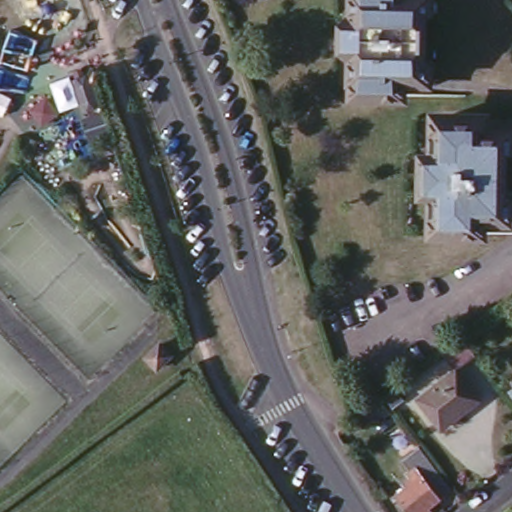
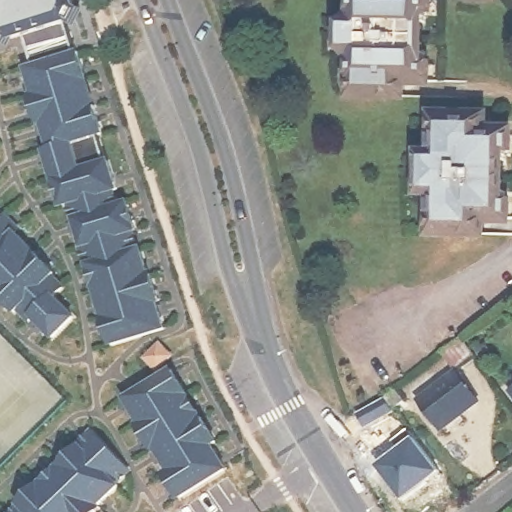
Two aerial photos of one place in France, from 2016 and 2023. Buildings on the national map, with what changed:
new [(72,3),(65,17),(10,33),(0,27),(0,0),(71,0),(72,3)]
unchanged [(357,61),(345,60),(347,24),(358,24),(359,0),(405,0),(428,0),(427,27),(423,27),(423,54),(426,54),(425,87),(398,86),(398,102),(355,99),(357,61)]
new [(103,131),(72,141),(80,165),(107,158),(117,186),(112,188),(115,199),(125,195),(164,326),(105,340),(65,204),(57,206),(40,147),(45,145),(21,62),(79,47),(103,131)]
unchanged [(428,184),(415,184),(415,149),(429,149),(430,112),(448,113),(449,111),(477,112),(476,128),(500,130),(500,155),(497,155),(495,186),(500,186),(499,213),(475,212),(475,228),(447,228),(446,224),(428,224),(428,184)]
new [(16,226),(13,230),(62,284),(52,294),(72,314),(48,338),(30,318),(25,322),(14,309),(10,313),(0,304),(0,211),(1,209),(16,226)]
unchanged [(454,378),(440,358),(460,342),(475,362),(454,378)]
unchanged [(143,359),(156,346),(166,356),(154,369),(143,359)]
new [(216,440),(210,444),(225,466),(175,498),(155,472),(161,468),(117,395),(169,364),(216,440)]
unchanged [(436,430),(418,404),(454,378),(476,408),(460,420),(440,435),(436,430)]
unchanged [(385,396),(395,389),(402,399),(392,407),(385,396)]
unchanged [(509,392),(512,390),(512,396),(509,392)]
unchanged [(353,418),(379,402),(382,407),(377,410),(380,415),(359,428),(353,418)]
new [(116,483),(95,502),(97,505),(91,512),(0,512),(71,445),(69,443),(86,426),(126,468),(114,480),(116,483)]
unchanged [(420,481),(405,461),(421,449),(451,490),(423,512),(410,512),(398,496),(420,481)]

